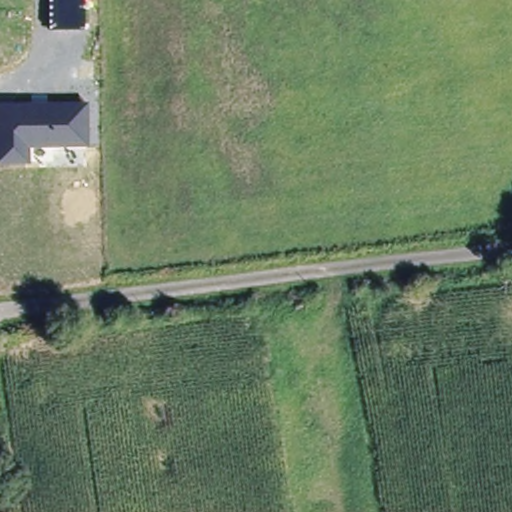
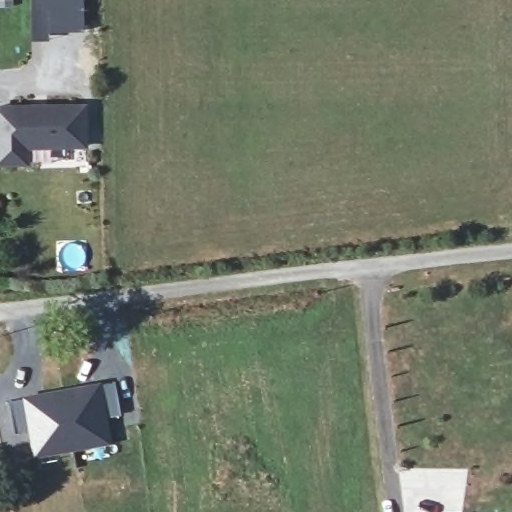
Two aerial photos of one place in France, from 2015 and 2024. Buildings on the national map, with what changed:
unchanged [(46,30),(46,0),(84,0),(84,32),(46,30)]
unchanged [(87,146),(28,147),(28,163),(0,164),(0,104),(88,103),(87,146)]
new [(23,397),(23,393),(102,380),(103,384),(115,381),(121,414),(108,416),(113,443),(35,458),(29,430),(16,432),(11,400),(23,397)]

